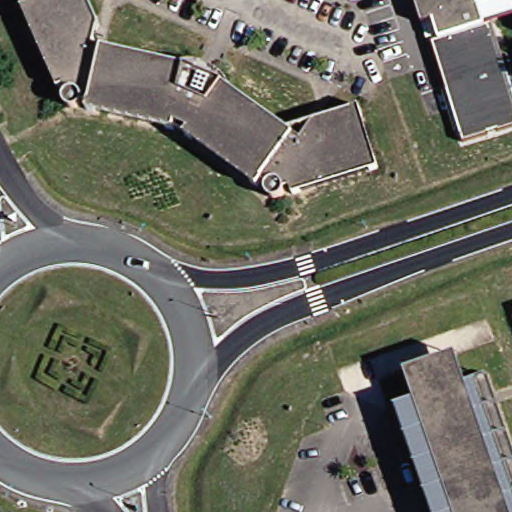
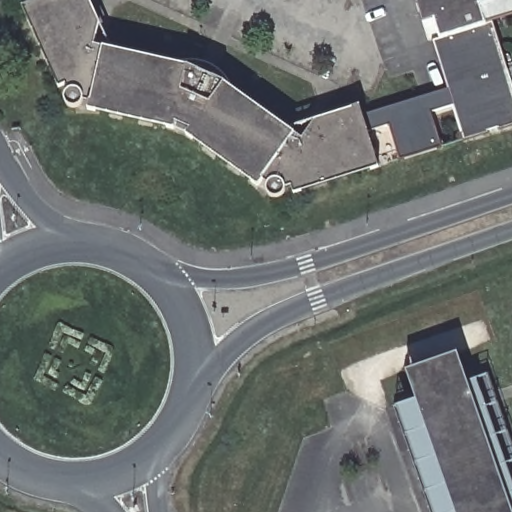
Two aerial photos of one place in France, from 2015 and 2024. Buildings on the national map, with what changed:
unchanged [(89,96),(82,95),(80,98),(76,101),(72,101),(67,100),(65,96),(64,91),(65,86),(67,84),(65,79),(57,82),(22,1),(24,0),(91,0),(98,16),(92,40),(186,61),(224,78),(300,135),(315,115),(358,102),(377,162),(292,189),(290,180),(284,182),(283,187),(280,190),(274,192),(268,189),(265,184),(266,178),(261,174),(257,181),(185,129),(172,124),(86,104),(89,96)]
unchanged [(416,0),(487,0),(490,8),(492,20),(431,41),(416,0)]
unchanged [(512,13),(492,20),(490,8),(502,0),(512,0),(512,13)]
unchanged [(431,41),(492,20),(512,86),(512,126),(462,141),(431,41)]
new [(362,115),(446,89),(451,105),(429,112),(441,147),(400,159),(389,124),(367,130),(362,115)]
unchanged [(415,399),(406,371),(456,354),(466,381),(415,399)]
unchanged [(466,381),(487,374),(512,445),(512,512),(430,512),(393,406),(415,399),(466,381)]

